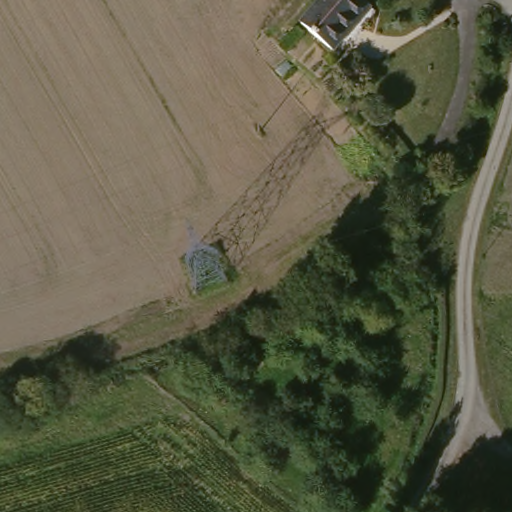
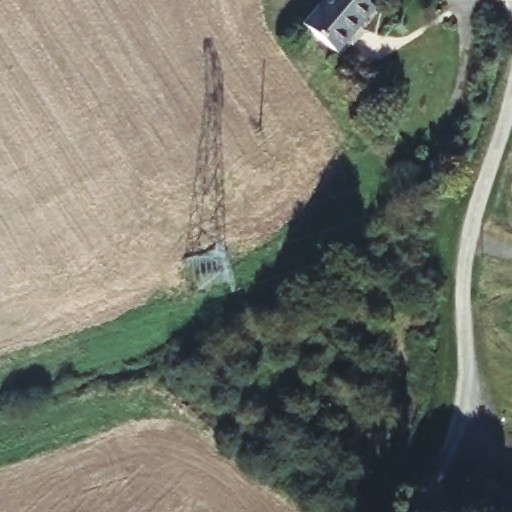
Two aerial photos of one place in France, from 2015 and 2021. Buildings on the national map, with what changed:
unchanged [(372,8),(347,34),(350,38),(337,51),(304,20),(322,0),(364,0),(372,8)]

